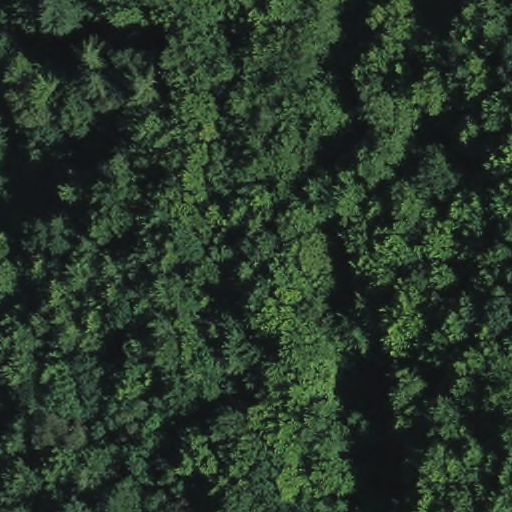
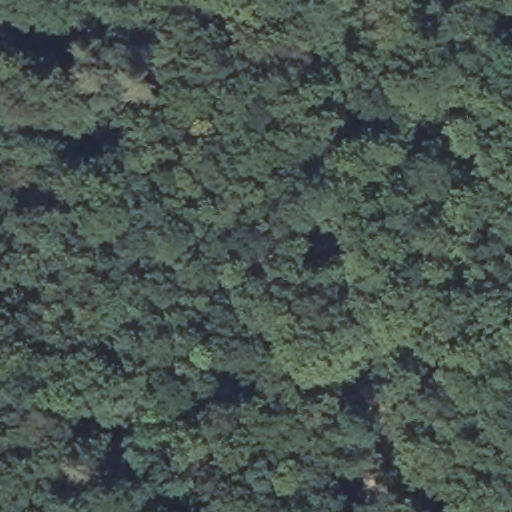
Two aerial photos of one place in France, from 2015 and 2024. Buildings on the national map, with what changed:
[]

